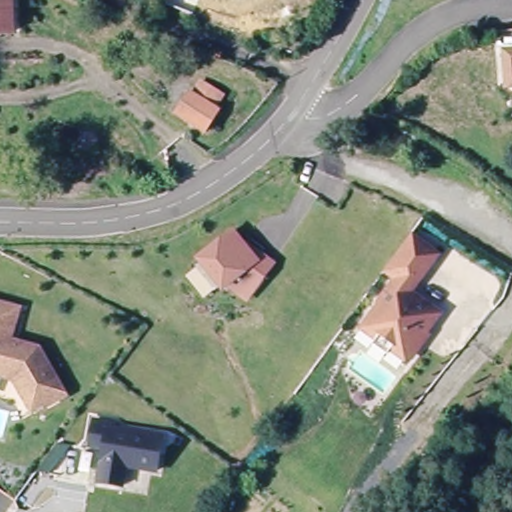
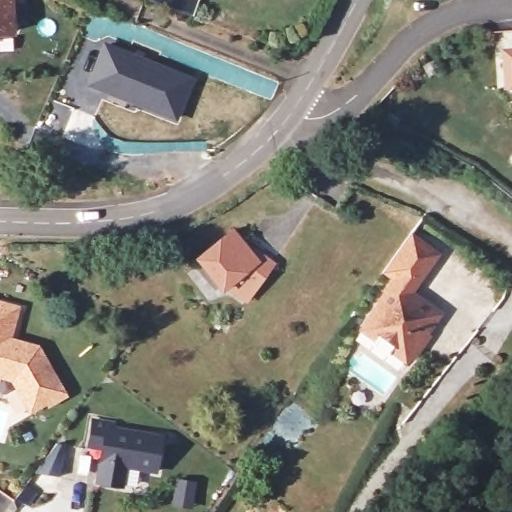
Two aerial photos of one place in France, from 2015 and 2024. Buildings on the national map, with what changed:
unchanged [(0,31),(0,0),(8,0),(11,30),(0,31)]
new [(160,7),(146,2),(147,0),(194,0),(199,2),(191,21),(160,7)]
new [(104,40),(196,77),(176,124),(83,85),(104,40)]
unchanged [(507,82),(506,47),(512,47),(512,82),(507,82)]
demolished [(213,111),(219,112),(207,137),(177,122),(186,99),(194,102),(199,85),(222,96),(213,111)]
unchanged [(245,298),(225,283),(221,287),(197,256),(233,228),(251,252),(256,247),(272,260),(245,298)]
unchanged [(381,339),(367,328),(400,278),(398,276),(388,269),(395,258),(414,233),(425,242),(442,254),(414,292),(444,312),(424,340),(427,342),(416,357),(413,355),(410,359),(395,347),(390,353),(378,345),(381,339)]
unchanged [(40,342),(68,392),(51,401),(49,398),(34,407),(14,376),(0,372),(0,298),(20,303),(12,336),(40,342)]
unchanged [(115,425),(115,431),(164,437),(159,472),(127,468),(125,487),(99,485),(105,451),(90,450),(91,443),(93,422),(115,425)]
new [(49,450),(56,451),(52,482),(28,479),(49,450)]

